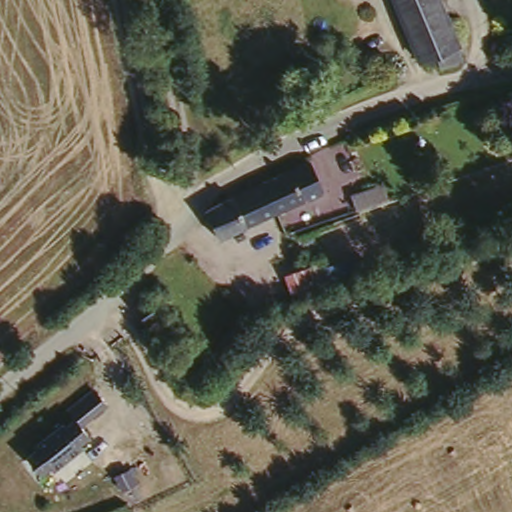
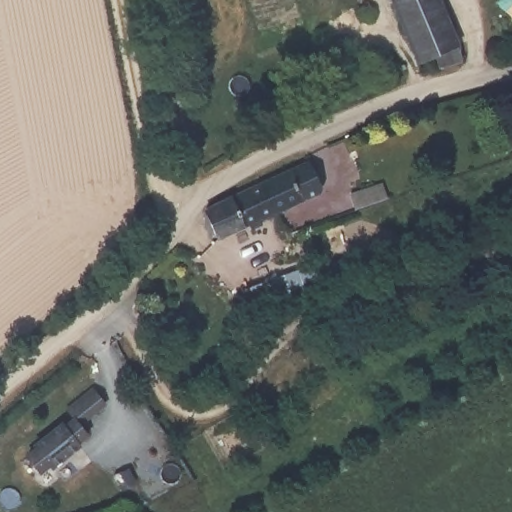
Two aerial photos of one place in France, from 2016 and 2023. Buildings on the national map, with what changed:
unchanged [(439,0),(442,7),(405,23),(395,0),(439,0)]
unchanged [(405,23),(442,7),(452,30),(415,47),(405,23)]
unchanged [(415,47),(452,30),(464,60),(440,67),(434,57),(420,63),(415,47)]
unchanged [(263,183),(308,162),(321,189),(320,193),(276,213),(263,183)]
unchanged [(216,205),(263,183),(276,213),(218,238),(204,212),(216,205)]
unchanged [(351,194),(383,183),(388,197),(356,209),(351,194)]
unchanged [(316,263),(326,285),(293,299),(283,278),(316,263)]
unchanged [(37,452),(34,446),(75,415),(90,436),(41,476),(30,458),(37,452)]

